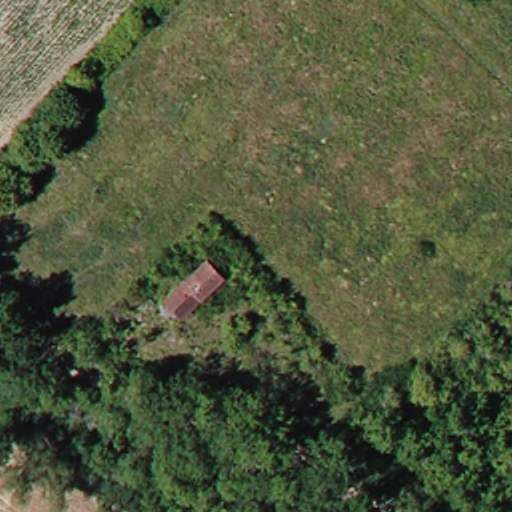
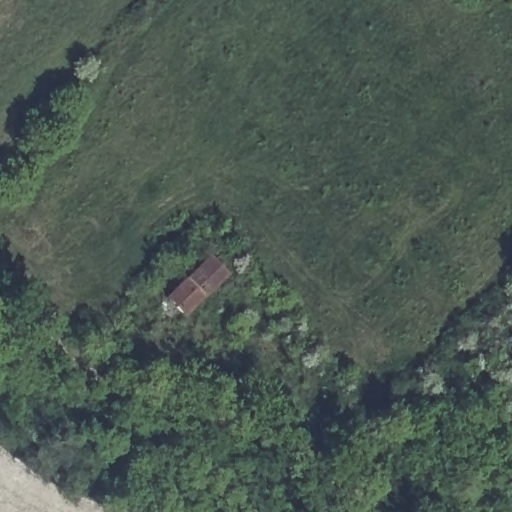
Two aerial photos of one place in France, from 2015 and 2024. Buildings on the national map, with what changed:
unchanged [(185,310),(173,296),(215,255),(229,270),(185,310)]

